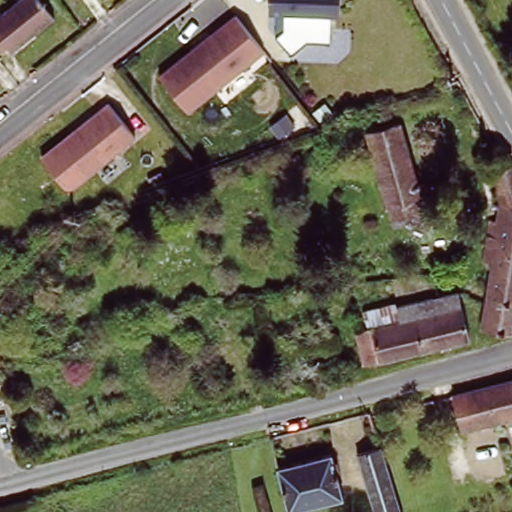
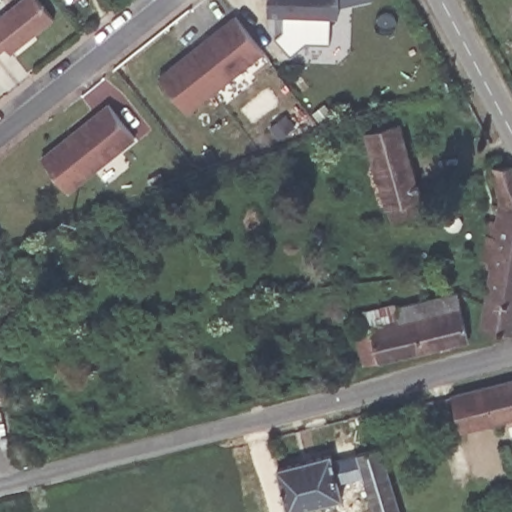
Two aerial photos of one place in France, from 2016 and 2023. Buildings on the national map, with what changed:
unchanged [(10,44),(5,39),(0,43),(0,10),(14,0),(45,0),(53,9),(10,44)]
unchanged [(331,4),(328,33),(304,31),(288,45),(276,29),(282,24),(286,4),(272,3),(272,0),(336,0),(335,5),(331,4)]
unchanged [(263,45),(185,106),(160,66),(238,10),(263,45)]
unchanged [(136,137),(70,191),(40,155),(107,102),(136,137)]
unchanged [(435,106),(440,117),(406,129),(402,118),(435,106)]
unchanged [(398,239),(395,227),(373,147),(405,139),(427,219),(430,230),(398,239)]
unchanged [(482,330),(486,302),(492,261),(483,260),(491,205),(502,205),(492,167),(505,165),(512,165),(512,332),(482,330)]
unchanged [(461,285),(474,333),(370,360),(362,326),(374,323),(370,309),(402,300),(440,291),(461,285)]
unchanged [(463,428),(455,395),(512,380),(512,415),(463,428)]
unchanged [(383,447),(402,512),(372,512),(355,456),(383,447)]
unchanged [(324,456),(335,498),(287,511),(275,470),(324,456)]

